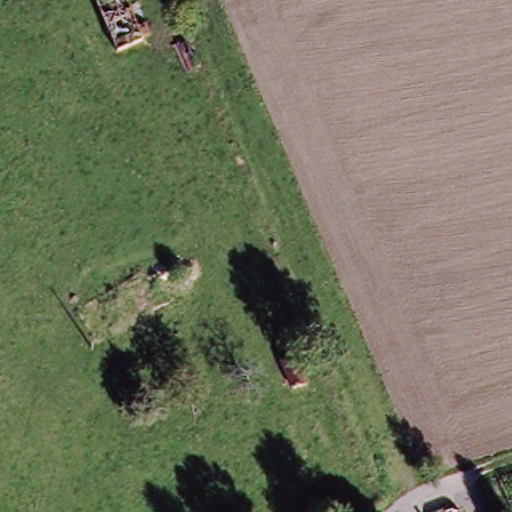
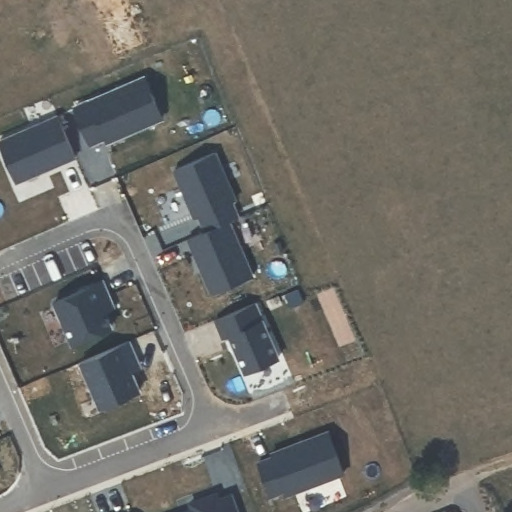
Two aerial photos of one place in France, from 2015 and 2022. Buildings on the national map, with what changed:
demolished [(117,53),(94,0),(128,0),(145,41),(117,53)]
new [(149,46),(121,59),(95,0),(129,0),(149,46)]
new [(165,121),(110,144),(108,139),(92,146),(77,109),(148,79),(165,121)]
new [(78,159),(17,184),(0,142),(60,117),(78,159)]
new [(239,204),(235,206),(241,221),(208,234),(202,219),(197,221),(177,172),(218,156),(239,204)]
new [(190,242),(231,225),(255,282),(215,298),(190,242)]
demolished [(93,347),(72,316),(140,273),(147,283),(174,267),(189,291),(93,347)]
new [(257,306),(280,362),(247,376),(231,339),(225,342),(217,323),(257,306)]
new [(80,364),(129,343),(135,360),(126,363),(139,393),(100,410),(80,364)]
demolished [(317,377),(300,383),(288,355),(305,350),(317,377)]
new [(343,478),(286,498),(285,494),(270,499),(258,467),(273,462),(271,457),(328,437),(343,478)]
new [(215,498),(217,504),(231,498),(236,512),(191,512),(190,507),(215,498)]

